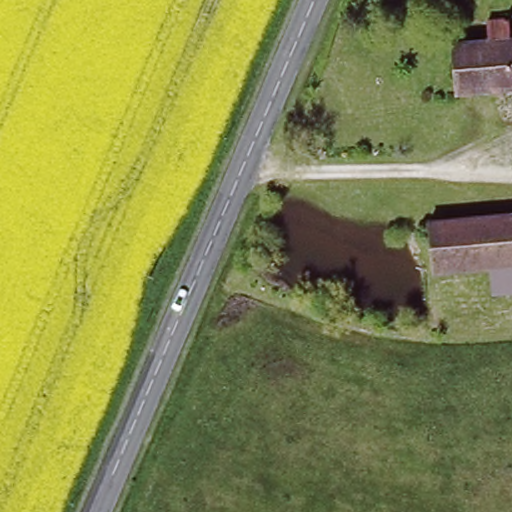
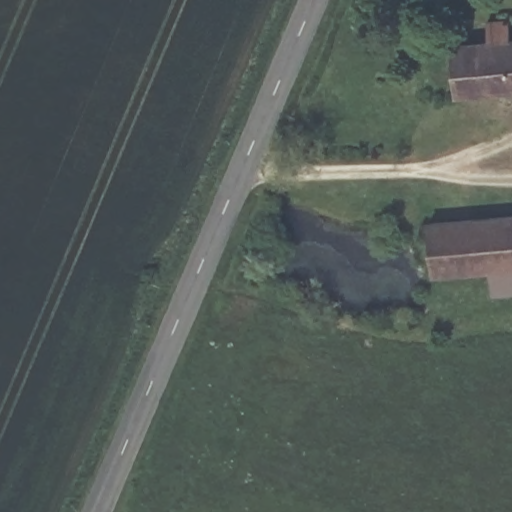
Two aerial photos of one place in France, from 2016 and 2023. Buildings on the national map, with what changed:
unchanged [(454,43),(462,42),(460,22),(488,18),(512,18),(512,23),(512,87),(459,92),(454,43)]
unchanged [(427,219),(512,210),(512,284),(492,286),(489,262),(432,268),(427,219)]
unchanged [(257,262),(274,267),(270,281),(250,276),(257,262)]

